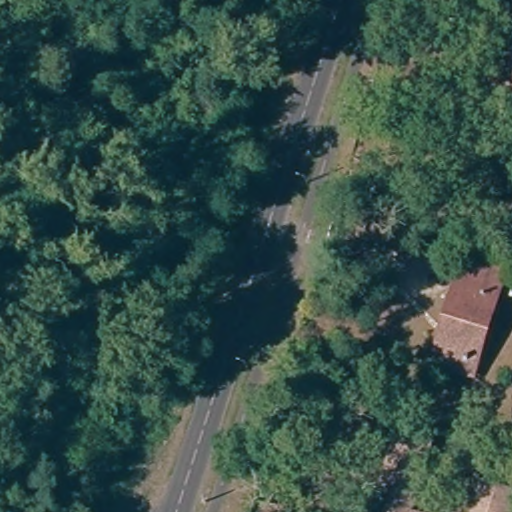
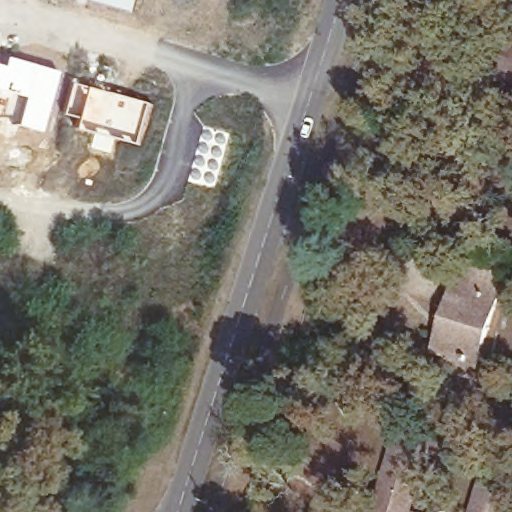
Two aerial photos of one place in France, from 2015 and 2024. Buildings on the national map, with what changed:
new [(136,12),(93,0),(139,0),(136,12)]
unchanged [(500,68),(512,32),(512,72),(500,68)]
new [(8,56),(60,70),(41,130),(19,124),(0,125),(0,64),(5,66),(8,56)]
new [(64,113),(72,82),(153,104),(141,146),(74,127),(77,117),(64,113)]
unchanged [(444,372),(448,359),(434,354),(458,279),(463,264),(504,278),(500,292),(476,368),(472,381),(444,372)]
unchanged [(420,442),(397,511),(399,512),(362,512),(388,431),(420,442)]
unchanged [(503,493),(498,512),(464,512),(473,484),(503,493)]

